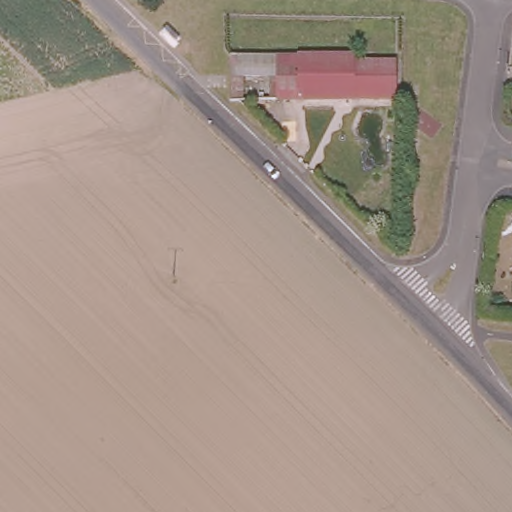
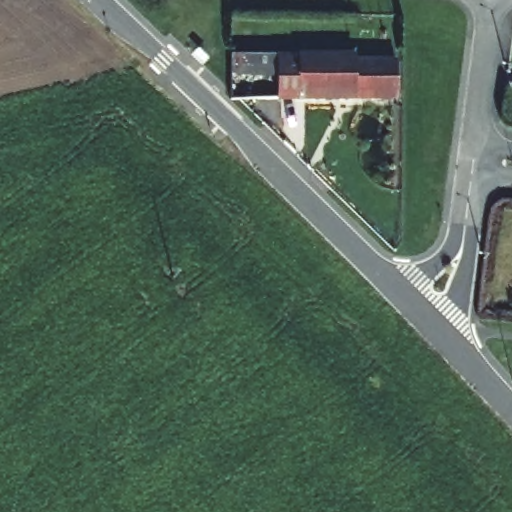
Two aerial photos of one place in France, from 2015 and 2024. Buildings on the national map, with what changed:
unchanged [(277,54),(277,76),(243,76),(244,92),(232,92),(232,53),(277,54)]
unchanged [(352,61),(393,61),(393,96),(277,97),(277,76),(277,54),(352,54),(352,61)]

